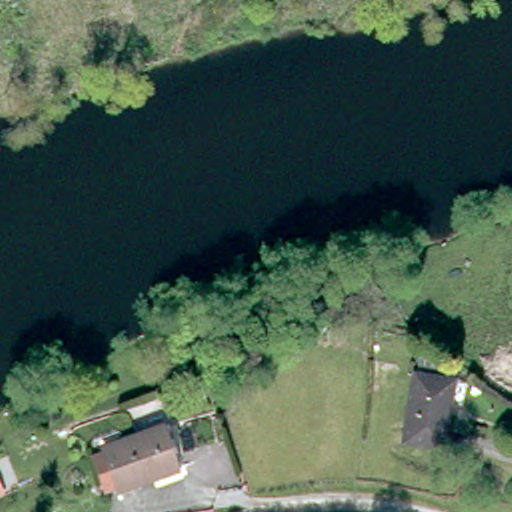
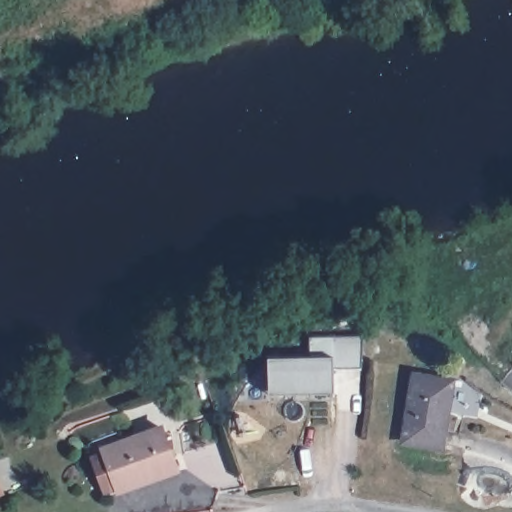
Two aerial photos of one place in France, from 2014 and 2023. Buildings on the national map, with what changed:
new [(303,337),(326,336),(357,335),(355,367),(327,367),(328,394),(262,395),(262,358),(304,357),(303,337)]
unchanged [(453,376),(440,445),(400,438),(412,370),(453,376)]
unchanged [(93,450),(105,446),(104,443),(163,421),(178,464),(120,486),(118,483),(107,487),(93,450)]

